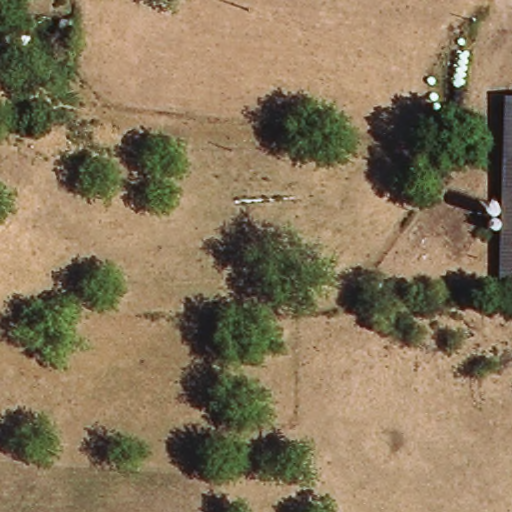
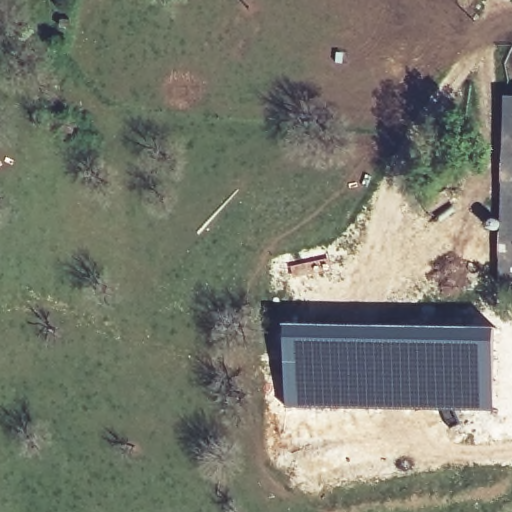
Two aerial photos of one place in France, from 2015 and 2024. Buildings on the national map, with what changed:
unchanged [(512,95),(512,141),(502,140),(505,94),(512,95)]
unchanged [(497,220),(502,140),(512,141),(512,221),(497,220)]
unchanged [(491,281),(497,220),(512,221),(512,282),(491,281)]
new [(285,323),(498,327),(497,412),(284,409),(285,323)]

